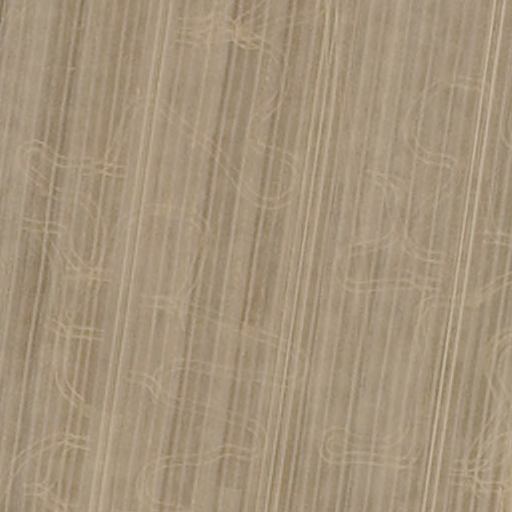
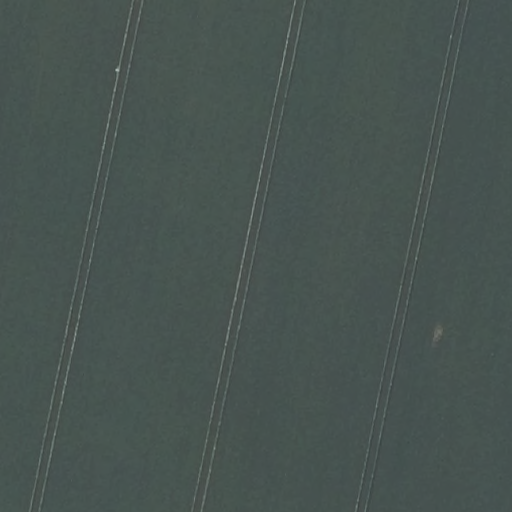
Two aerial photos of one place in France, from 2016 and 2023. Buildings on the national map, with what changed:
[]

